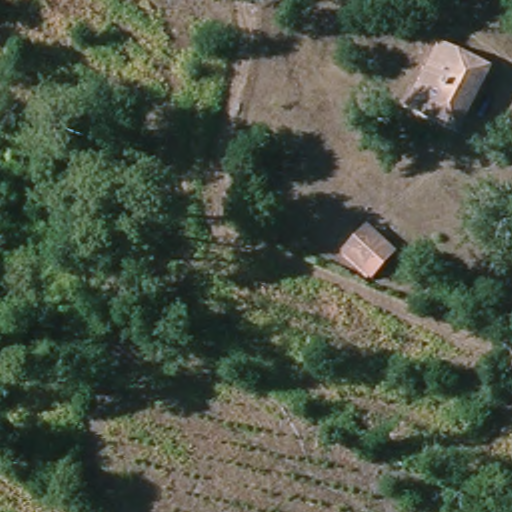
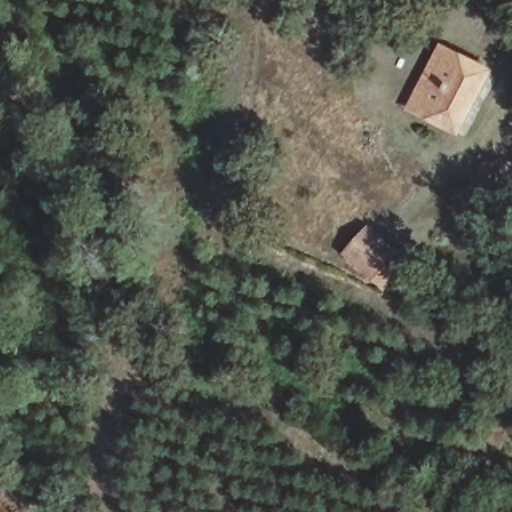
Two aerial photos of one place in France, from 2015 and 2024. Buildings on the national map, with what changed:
unchanged [(411,109),(446,52),(485,75),(489,77),(456,135),(441,127),(411,109)]
unchanged [(392,257),(372,277),(347,255),(366,232),(392,257)]

